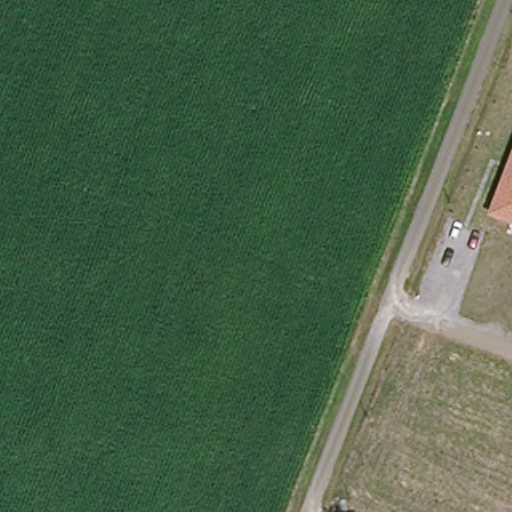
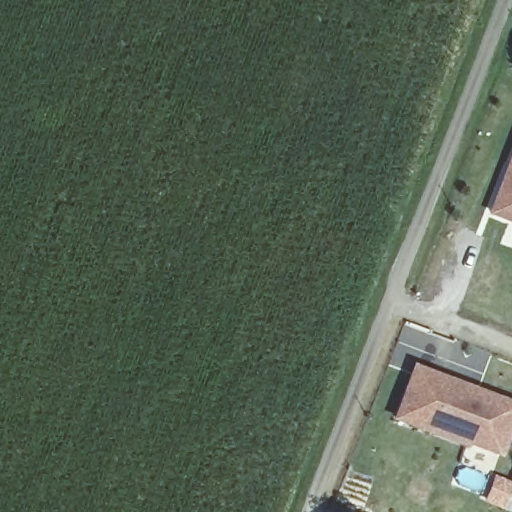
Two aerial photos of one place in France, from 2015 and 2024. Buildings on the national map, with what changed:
unchanged [(488,214),(512,150),(512,223),(488,214)]
new [(398,407),(415,363),(418,357),(449,370),(472,378),(480,382),(512,394),(512,415),(501,443),(469,431),(467,435),(431,420),(398,407)]

